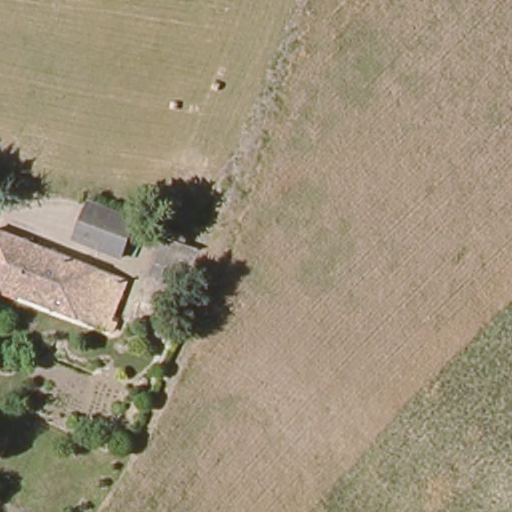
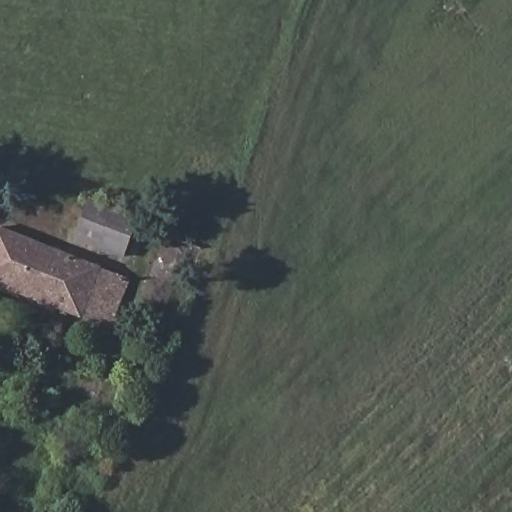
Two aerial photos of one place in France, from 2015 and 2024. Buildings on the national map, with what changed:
unchanged [(126,263),(76,246),(92,204),(142,222),(126,263)]
unchanged [(103,332),(0,291),(0,251),(6,237),(125,283),(103,332)]

